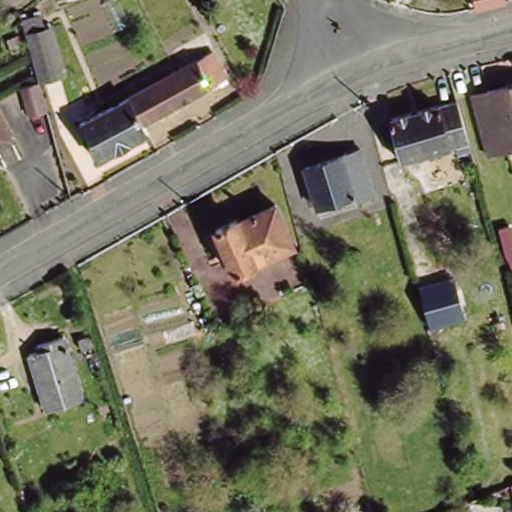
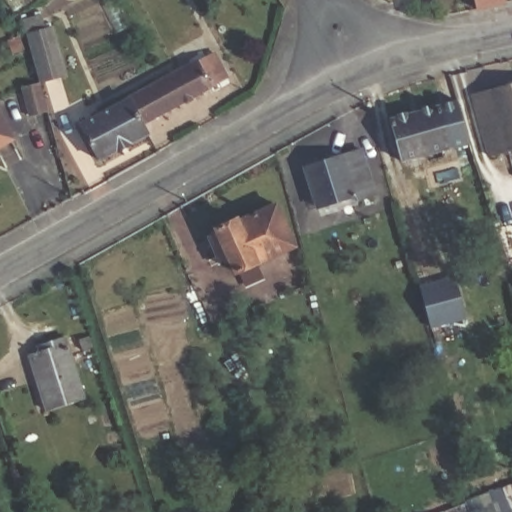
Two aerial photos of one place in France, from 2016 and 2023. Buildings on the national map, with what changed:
unchanged [(474,0),(490,0),(475,3),(474,0)]
unchanged [(27,26),(52,20),(67,67),(41,75),(27,26)]
unchanged [(178,66),(192,59),(190,55),(197,52),(199,56),(216,47),(230,73),(147,120),(131,93),(178,66)]
unchanged [(470,91),(512,79),(512,142),(487,150),(470,91)]
unchanged [(20,85),(38,81),(46,111),(29,114),(20,85)]
unchanged [(100,156),(82,120),(131,93),(147,120),(152,130),(100,156)]
unchanged [(470,147),(457,151),(454,143),(400,156),(388,114),(437,100),(437,102),(457,97),(470,147)]
unchanged [(5,134),(0,136),(0,126),(5,134)]
unchanged [(372,184),(355,190),(353,185),(315,198),(302,159),(358,141),(372,184)]
unchanged [(297,240),(237,269),(230,253),(225,255),(213,231),(218,229),(217,226),(239,215),(240,217),(278,200),(297,240)]
unchanged [(419,285),(455,275),(465,320),(430,329),(419,285)]
unchanged [(85,346),(73,350),(70,339),(82,336),(85,346)]
unchanged [(25,355),(37,351),(35,346),(62,337),(82,399),(44,412),(25,355)]
unchanged [(512,481),(512,502),(505,484),(512,481)]

